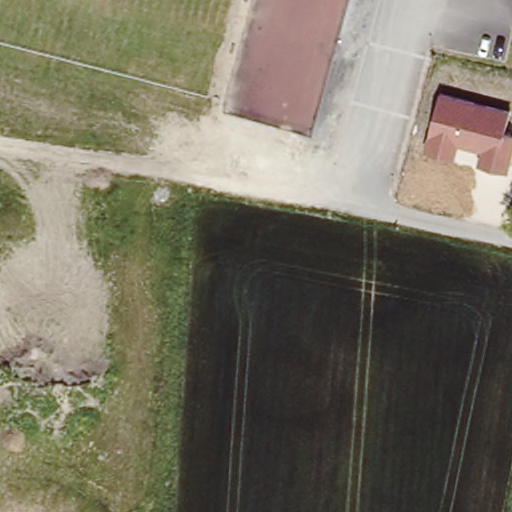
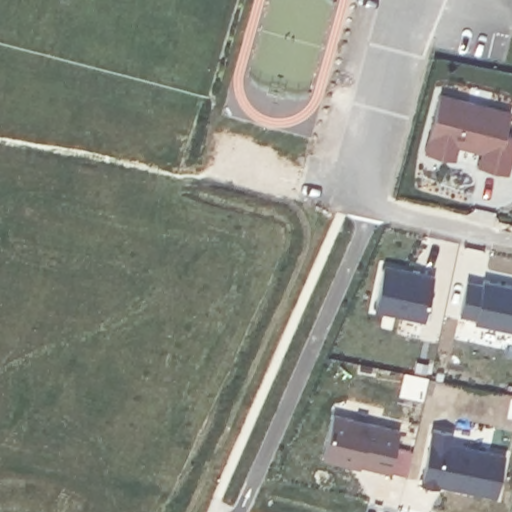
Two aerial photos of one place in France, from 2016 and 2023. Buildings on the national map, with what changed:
unchanged [(481,148),(458,142),(455,160),(423,152),(440,89),(512,108),(512,110),(507,132),(512,134),(512,158),(508,172),(478,166),(481,148)]
new [(382,264),(433,275),(425,320),(374,309),(382,264)]
new [(481,282),(482,276),(512,283),(512,329),(471,320),(472,318),(456,313),(464,278),(481,282)]
new [(399,428),(388,471),(360,464),(360,468),(320,458),(333,411),(399,428)]
new [(453,432),(451,443),(505,453),(496,496),(438,485),(438,487),(419,482),(430,427),(453,432)]

